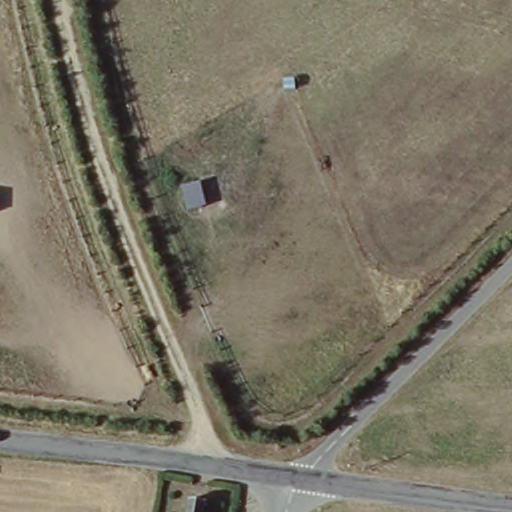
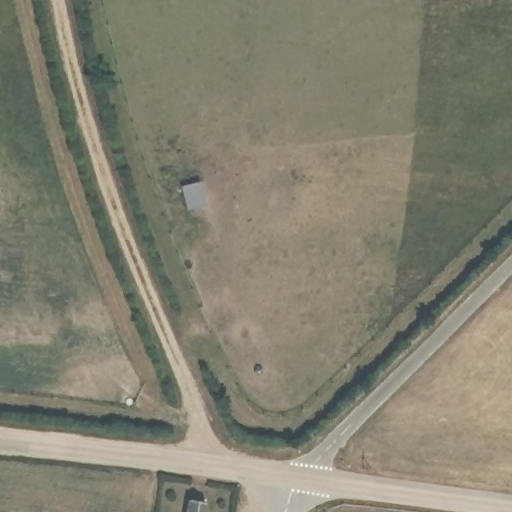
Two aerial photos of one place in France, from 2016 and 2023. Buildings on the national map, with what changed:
unchanged [(205,512),(186,512),(187,501),(206,502),(205,512)]

